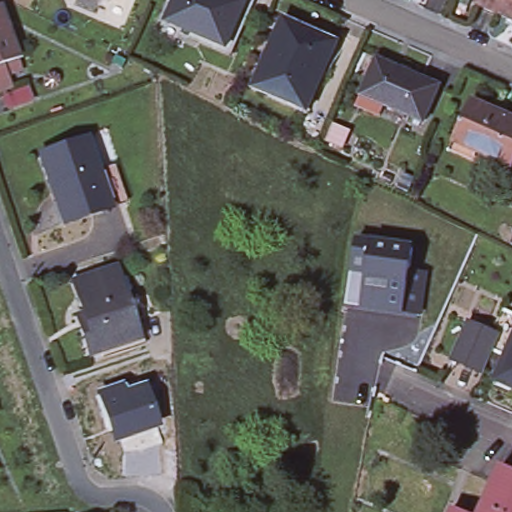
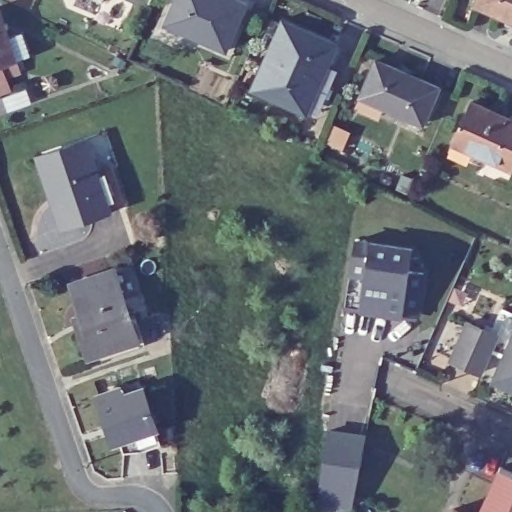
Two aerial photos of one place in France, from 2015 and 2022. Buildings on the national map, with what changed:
unchanged [(223,47),(164,21),(173,0),(239,0),(243,2),(223,47)]
unchanged [(476,0),(512,0),(512,22),(473,5),(476,0)]
unchanged [(17,56),(22,70),(0,76),(0,6),(17,56)]
unchanged [(335,43),(325,65),(330,66),(305,113),(250,89),(280,20),(335,43)]
unchanged [(436,87),(420,123),(382,106),(377,116),(352,105),(371,59),(436,87)]
unchanged [(512,161),(510,167),(451,142),(468,101),(512,121),(512,161)]
unchanged [(48,199),(35,159),(82,143),(93,176),(108,171),(120,209),(105,213),(65,226),(58,228),(48,199)]
unchanged [(410,180),(405,194),(395,190),(401,176),(410,180)]
unchanged [(407,313),(349,306),(358,237),(415,243),(407,313)]
unchanged [(127,345),(82,360),(73,333),(69,320),(77,317),(67,285),(111,271),(128,324),(134,342),(127,345)]
unchanged [(502,353),(488,347),(478,367),(450,353),(467,317),(488,326),(498,303),(505,306),(512,310),(512,385),(492,376),(502,353)]
unchanged [(139,454),(122,455),(117,441),(113,443),(98,398),(117,391),(117,389),(137,382),(140,391),(153,430),(159,447),(139,454)]
new [(325,433),(363,438),(349,507),(315,502),(325,433)]
unchanged [(503,471),(500,470),(502,468),(512,473),(512,512),(484,512),(503,471)]
unchanged [(455,511),(457,512),(454,512),(455,511)]

